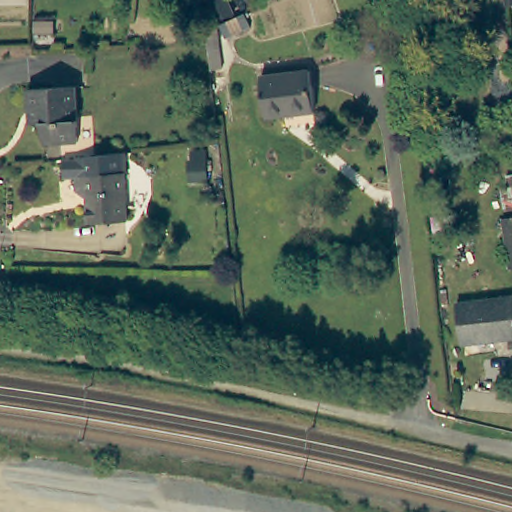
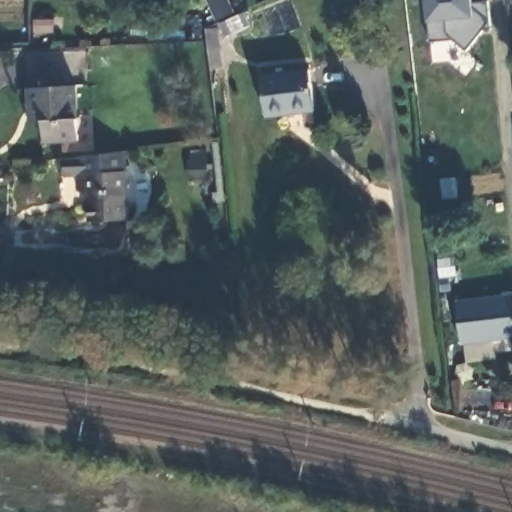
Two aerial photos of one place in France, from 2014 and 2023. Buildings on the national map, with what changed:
new [(473,0),(473,3),(489,2),(492,29),(484,30),(468,50),(456,40),(432,42),(427,0),(473,0)]
unchanged [(505,0),(512,0),(512,4),(506,5),(505,0)]
unchanged [(226,37),(220,22),(244,12),(250,26),(226,37)]
unchanged [(222,67),(211,69),(207,30),(219,29),(222,67)]
unchanged [(262,76),(310,70),(315,111),(266,116),(262,76)]
unchanged [(38,137),(37,117),(28,117),(27,105),(25,105),(23,83),(70,81),(73,136),(38,137)]
unchanged [(207,181),(194,182),(191,152),(204,151),(207,181)]
unchanged [(126,167),(127,181),(126,184),(128,229),(90,231),(88,205),(79,199),(78,185),(66,185),(65,167),(124,164),(126,167)]
demolished [(505,217),(512,217),(512,267),(511,267),(505,217)]
unchanged [(457,298),(512,291),(512,332),(461,337),(457,298)]

